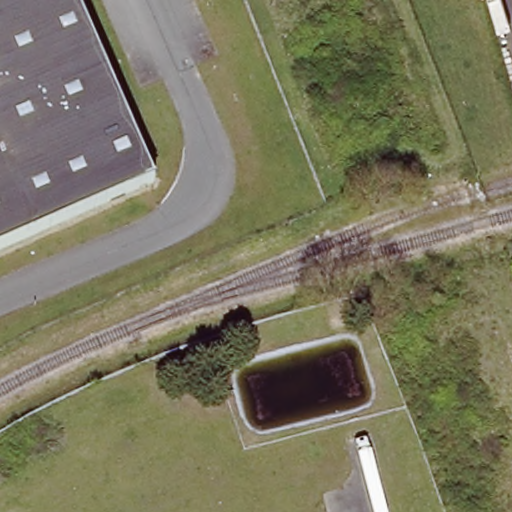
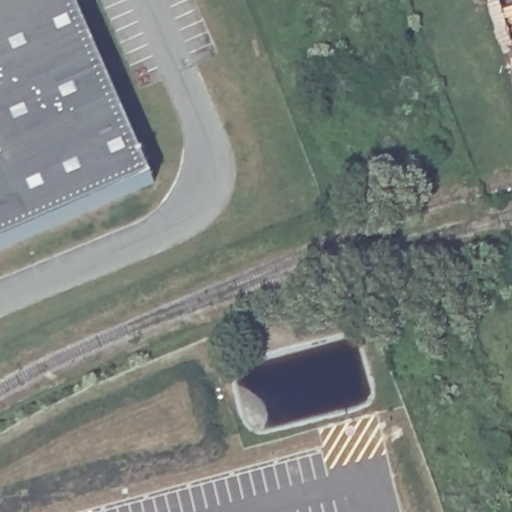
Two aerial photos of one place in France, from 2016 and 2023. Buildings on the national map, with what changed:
unchanged [(0,253),(0,0),(71,0),(152,186),(0,253)]

